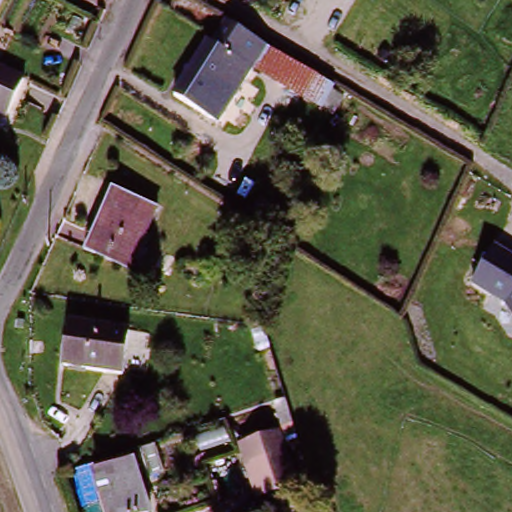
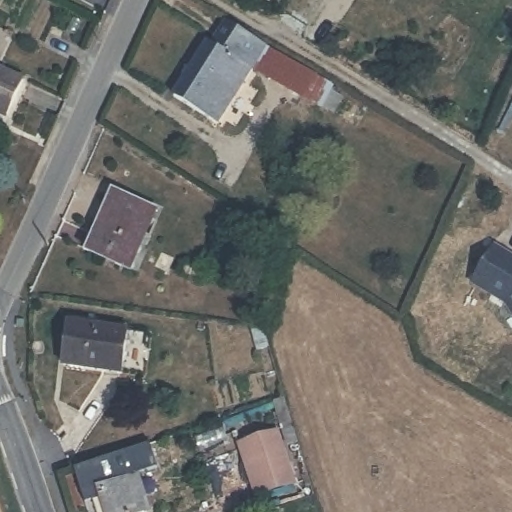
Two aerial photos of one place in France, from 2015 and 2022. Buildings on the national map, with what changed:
unchanged [(433,0),(444,0),(441,5),(433,0)]
unchanged [(471,0),(465,9),(452,0),(471,0)]
unchanged [(251,69),(221,49),(235,27),(269,47),(256,69),(251,69)]
unchanged [(199,115),(181,102),(216,46),(221,49),(251,69),(224,112),(216,125),(199,115)]
unchanged [(308,99),(256,69),(269,47),(321,77),(336,87),(323,110),(308,99)]
unchanged [(0,68),(24,80),(5,117),(0,114),(0,68)]
unchanged [(92,229),(101,233),(117,196),(157,213),(131,272),(91,254),(83,251),(92,229)]
unchanged [(500,300),(469,281),(492,244),(512,257),(512,316),(500,300)]
unchanged [(116,376),(60,367),(66,327),(122,336),(116,376)]
unchanged [(269,404),(280,400),(294,443),(284,447),(269,404)]
unchanged [(271,438),(288,491),(254,501),(238,448),(271,438)]
unchanged [(145,512),(104,512),(93,477),(129,465),(145,512)]

